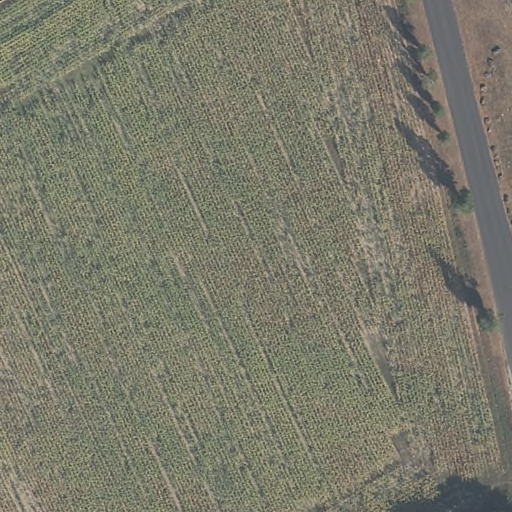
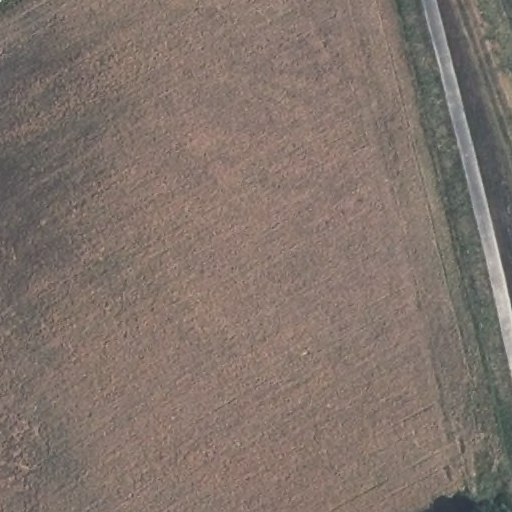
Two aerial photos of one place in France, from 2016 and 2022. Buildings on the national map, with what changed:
[]

